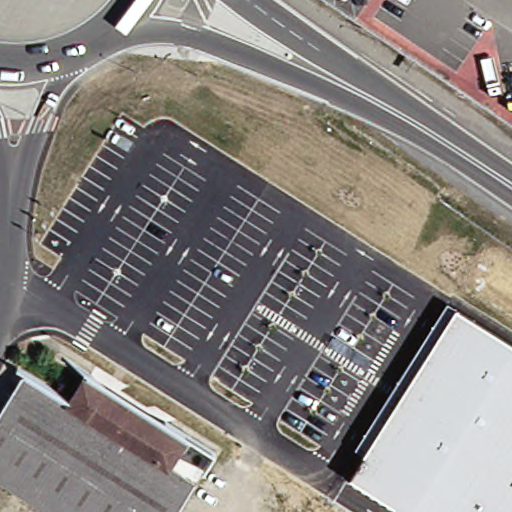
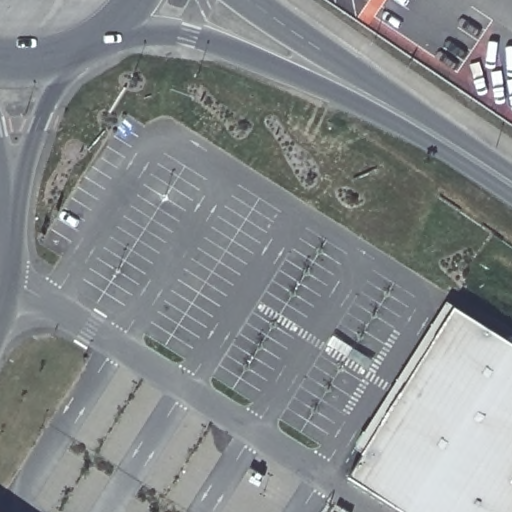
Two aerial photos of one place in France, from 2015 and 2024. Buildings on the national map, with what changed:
unchanged [(365,453),(356,448),(448,302),(458,309),(512,343),(512,512),(404,512),(350,477),(365,453)]
demolished [(57,512),(0,476),(0,420),(12,401),(28,375),(74,404),(90,379),(189,442),(173,467),(200,484),(182,512),(57,512)]
demolished [(405,512),(335,512),(346,487),(405,512)]

